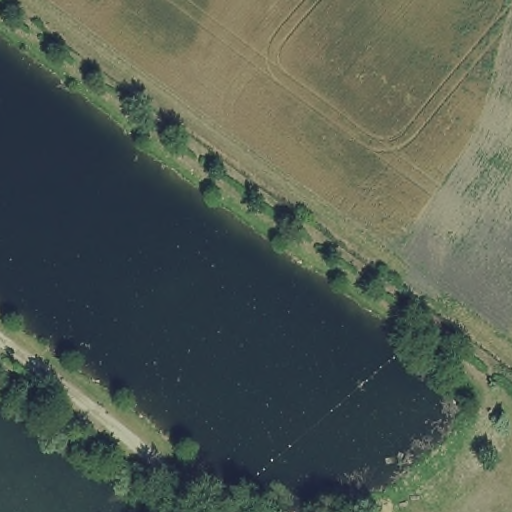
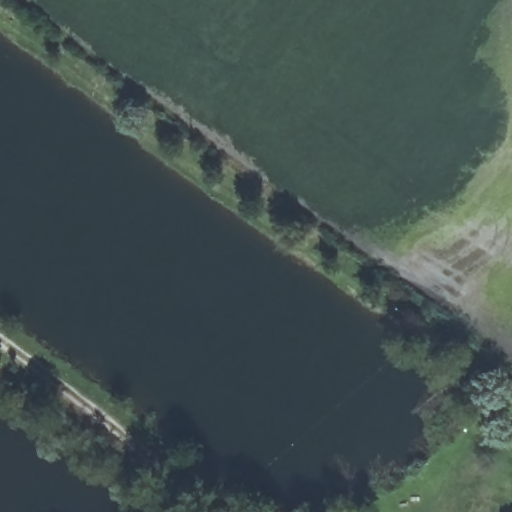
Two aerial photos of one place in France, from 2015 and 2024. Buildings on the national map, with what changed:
[]

